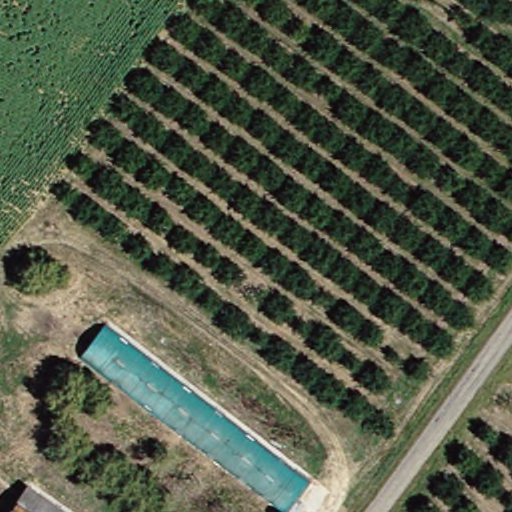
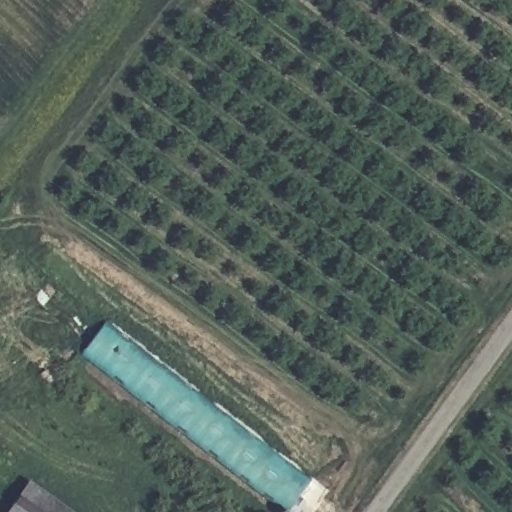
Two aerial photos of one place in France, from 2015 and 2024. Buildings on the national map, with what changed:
unchanged [(290,510),(83,356),(106,325),(313,482),(290,510)]
unchanged [(69,512),(14,512),(32,486),(69,512)]

